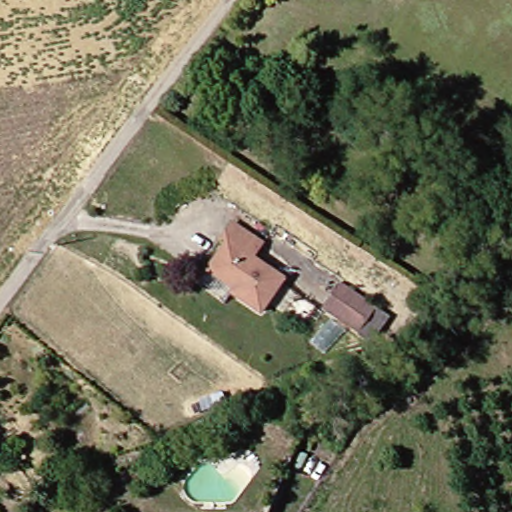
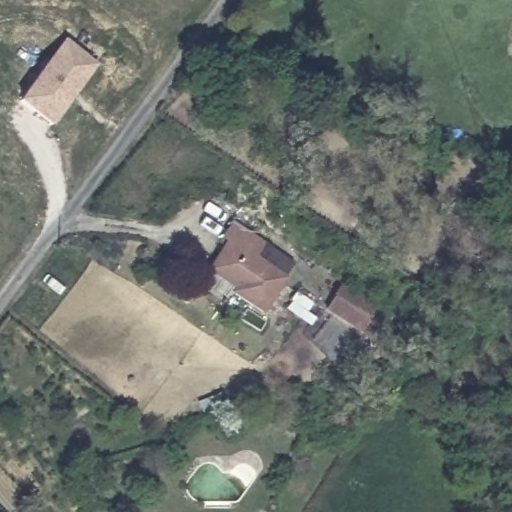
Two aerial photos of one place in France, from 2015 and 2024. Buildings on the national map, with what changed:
new [(63,42),(95,66),(48,126),(16,102),(63,42)]
unchanged [(268,242),(258,256),(292,279),(268,314),(234,291),(235,288),(212,272),(233,241),(227,235),(238,221),(268,242)]
unchanged [(389,310),(370,337),(335,311),(353,285),(389,310)]

